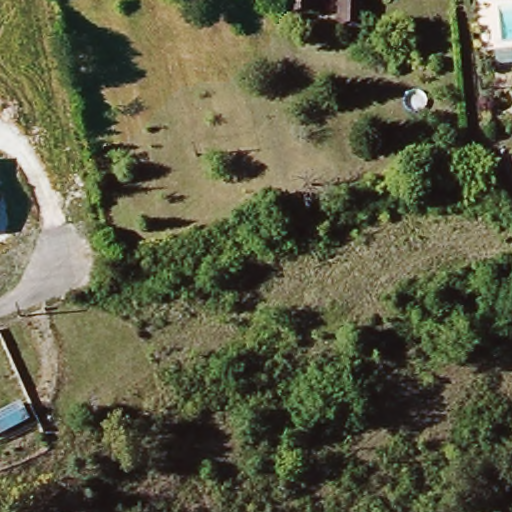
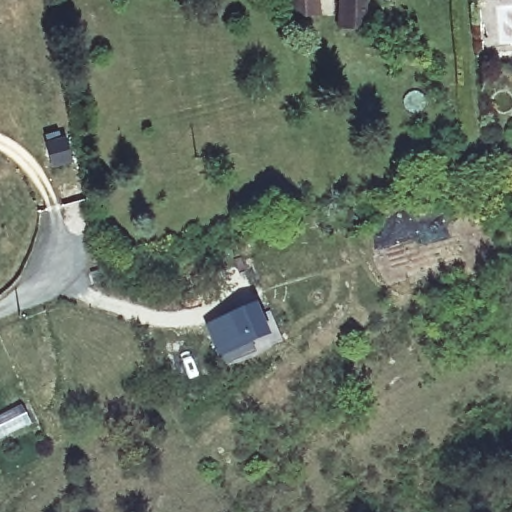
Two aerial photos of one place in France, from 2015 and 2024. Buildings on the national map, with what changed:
unchanged [(282,0),(317,0),(319,10),(283,16),(282,0)]
unchanged [(338,0),(363,0),(362,31),(337,31),(338,0)]
unchanged [(512,161),(512,167),(510,161),(512,161)]
new [(260,302),(275,339),(256,346),(258,351),(224,367),(206,325),(260,302)]

